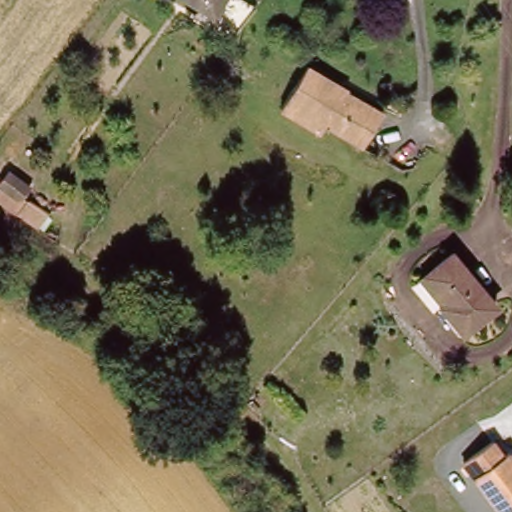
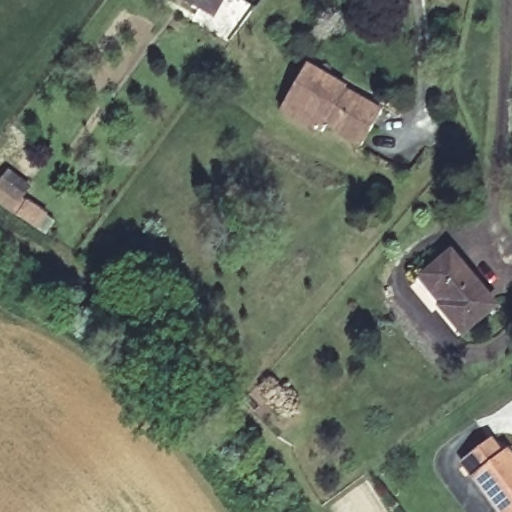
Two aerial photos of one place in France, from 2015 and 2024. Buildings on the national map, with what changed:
unchanged [(174,15),(179,9),(185,1),(184,0),(228,0),(239,9),(216,38),(212,44),(174,15)]
unchanged [(324,123),(317,131),(278,107),(308,61),(349,86),(346,92),(382,114),(361,145),(324,123)]
unchanged [(23,197),(49,214),(38,230),(0,205),(0,178),(5,170),(31,186),(23,197)]
unchanged [(460,334),(440,306),(447,300),(426,270),(455,250),(497,307),(460,334)]
unchanged [(499,512),(461,461),(494,436),(505,454),(511,451),(512,452),(512,512),(499,512)]

